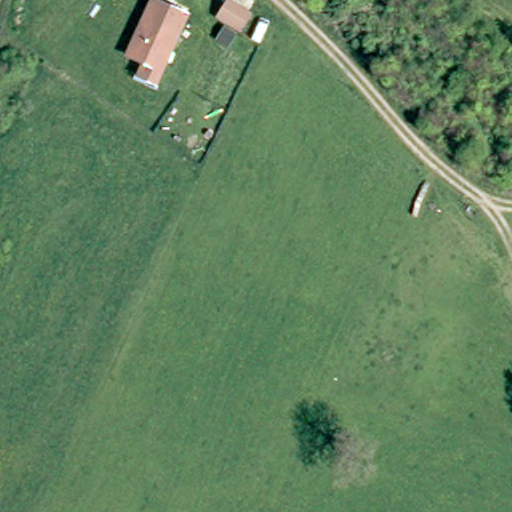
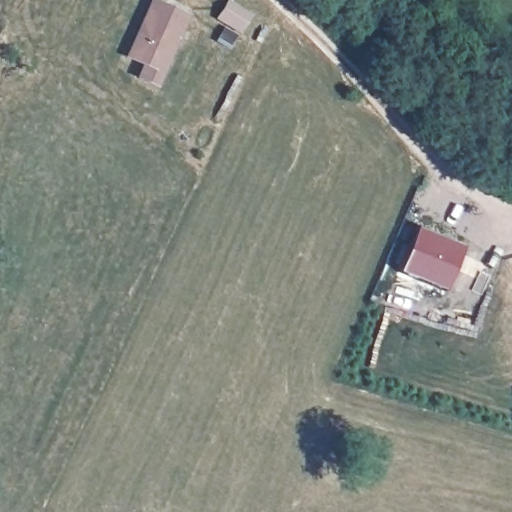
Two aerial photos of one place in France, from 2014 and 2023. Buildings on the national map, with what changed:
unchanged [(166,76),(133,59),(145,35),(161,6),(183,17),(194,23),(166,76)]
new [(415,226),(461,244),(442,290),(397,271),(415,226)]

